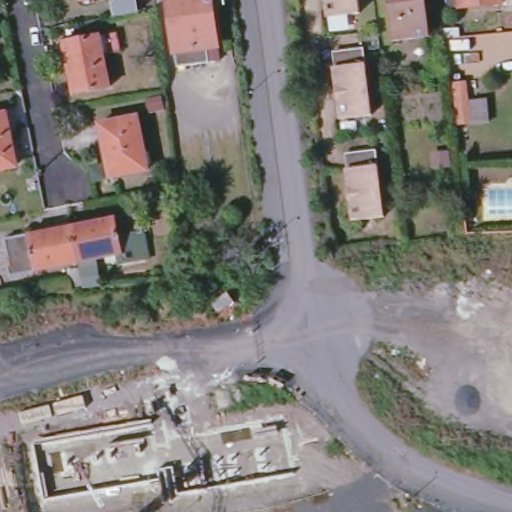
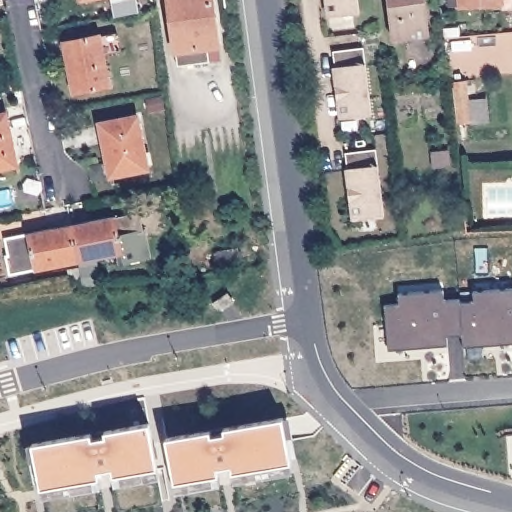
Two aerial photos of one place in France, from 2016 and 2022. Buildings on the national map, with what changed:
unchanged [(208,50),(210,65),(178,70),(169,0),(212,0),(218,48),(208,50)]
unchanged [(324,12),(323,0),(353,0),(355,9),(324,12)]
unchanged [(393,40),(388,0),(424,0),(429,36),(393,40)]
unchanged [(460,10),(459,0),(505,0),(506,6),(460,10)]
unchanged [(117,31),(121,51),(104,55),(110,86),(73,94),(63,42),(117,31)]
unchanged [(363,49),(372,115),(341,119),(335,68),(336,68),(334,52),(363,49)]
unchanged [(465,81),(467,101),(487,100),(490,122),(459,125),(455,83),(465,81)]
unchanged [(17,165),(0,169),(0,115),(6,114),(17,165)]
unchanged [(137,117),(147,170),(111,177),(101,125),(137,117)]
unchanged [(372,145),(379,212),(348,215),(342,165),(344,164),(342,148),(372,145)]
unchanged [(448,152),(449,165),(433,166),(432,154),(448,152)]
unchanged [(115,208),(116,210),(139,206),(147,250),(120,255),(118,244),(78,252),(72,216),(115,208)]
unchanged [(72,216),(78,252),(10,265),(6,247),(8,246),(5,230),(72,216)]
unchanged [(97,255),(100,269),(85,272),(82,258),(97,255)]
unchanged [(79,258),(82,275),(71,276),(68,261),(79,258)]
new [(460,297),(463,335),(447,335),(447,350),(426,348),(392,351),(389,320),(385,320),(385,301),(400,300),(399,290),(444,287),(445,297),(460,297)]
new [(512,287),(512,344),(500,345),(500,340),(463,342),(460,300),(475,300),(474,290),(512,287)]
new [(213,303),(228,293),(234,302),(219,312),(213,303)]
new [(165,438),(210,430),(211,435),(225,433),(223,428),(282,418),(290,463),(232,474),(231,469),(217,471),(218,476),(173,484),(165,438)]
new [(157,469),(112,477),(112,472),(98,474),(99,479),(40,490),(32,443),(91,433),(92,438),(105,436),(105,431),(149,423),(157,469)]
new [(348,457),(360,466),(345,485),(333,476),(348,457)]

